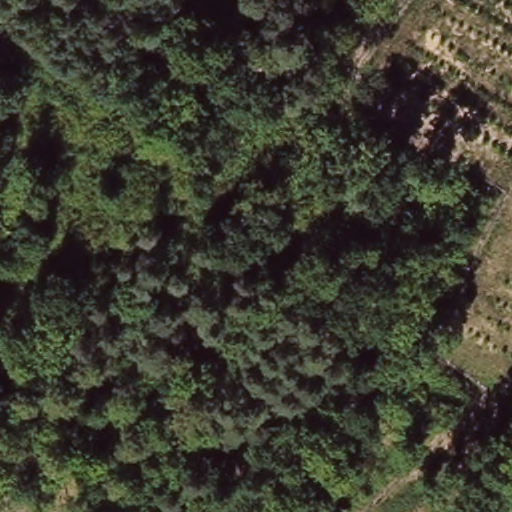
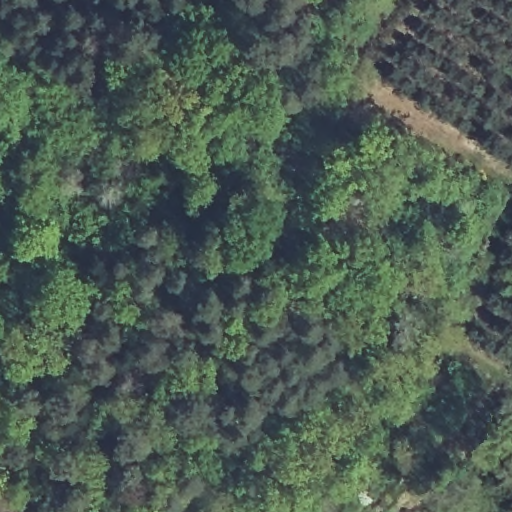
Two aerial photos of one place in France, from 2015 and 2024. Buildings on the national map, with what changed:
[]

